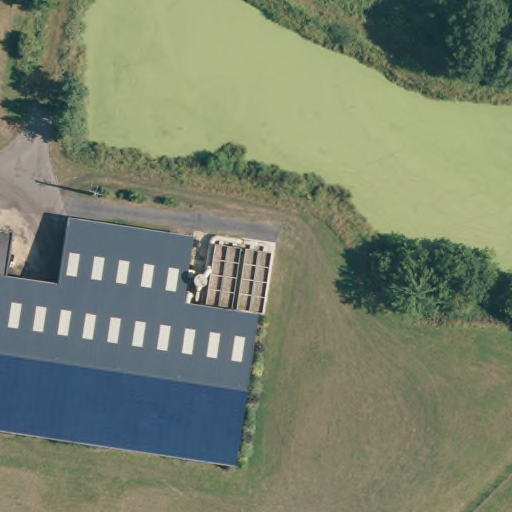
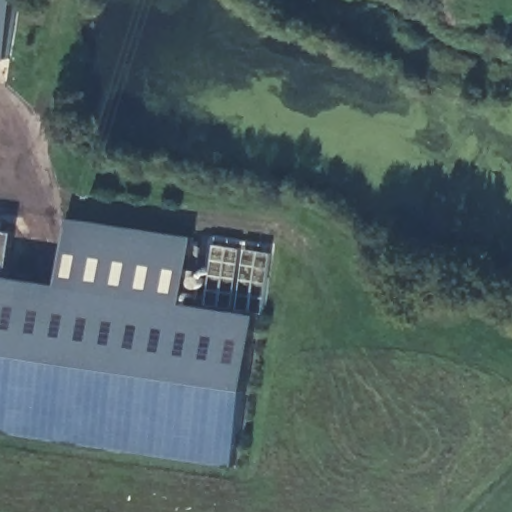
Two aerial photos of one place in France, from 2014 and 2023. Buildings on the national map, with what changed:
new [(8,60),(0,59),(0,0),(18,0),(8,60)]
unchanged [(58,285),(67,216),(194,236),(187,303),(261,313),(237,465),(12,433),(33,282),(58,285)]
unchanged [(5,232),(12,233),(5,278),(0,277),(0,231),(5,232)]
unchanged [(5,278),(33,282),(12,433),(0,431),(0,277),(5,278)]

